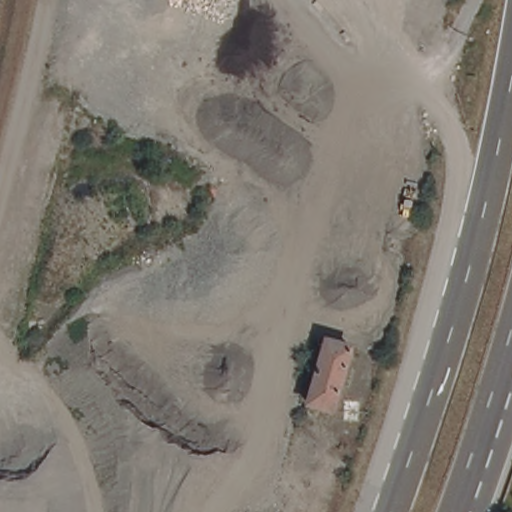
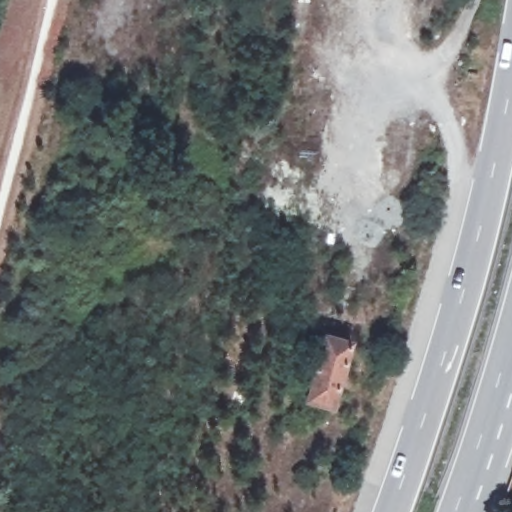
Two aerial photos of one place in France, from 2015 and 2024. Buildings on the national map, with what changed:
unchanged [(333,409),(310,402),(327,341),(351,348),(333,409)]

